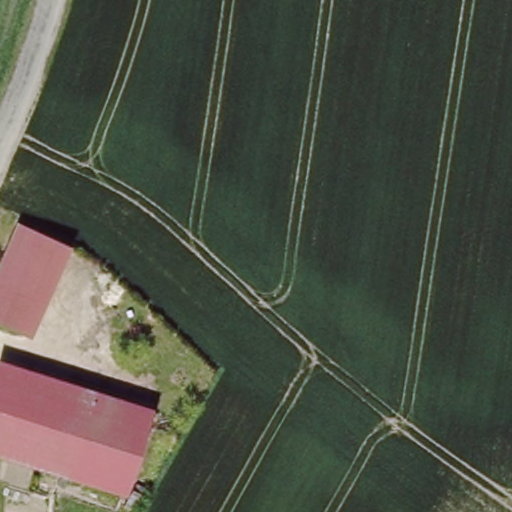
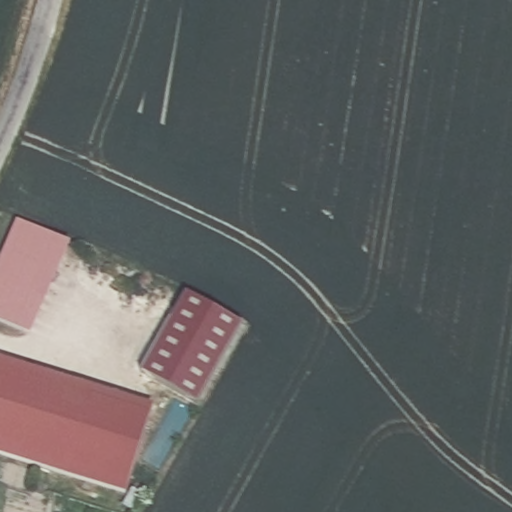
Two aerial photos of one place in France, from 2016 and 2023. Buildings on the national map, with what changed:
unchanged [(24,334),(0,323),(0,262),(16,224),(62,244),(43,289),(24,334)]
new [(199,404),(143,373),(186,295),(243,326),(199,404)]
unchanged [(93,389),(66,476),(0,455),(0,359),(93,389)]
unchanged [(93,389),(151,408),(123,493),(66,476),(93,389)]

